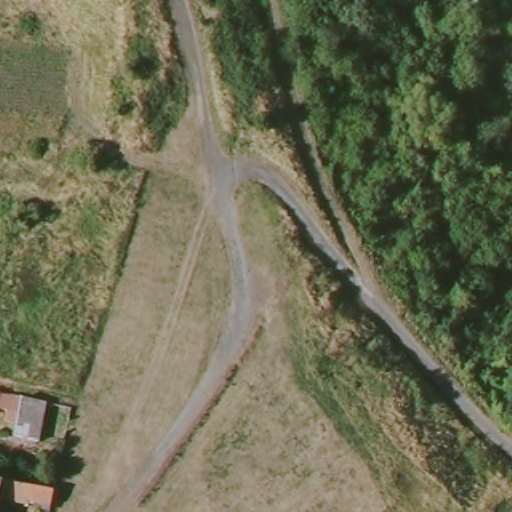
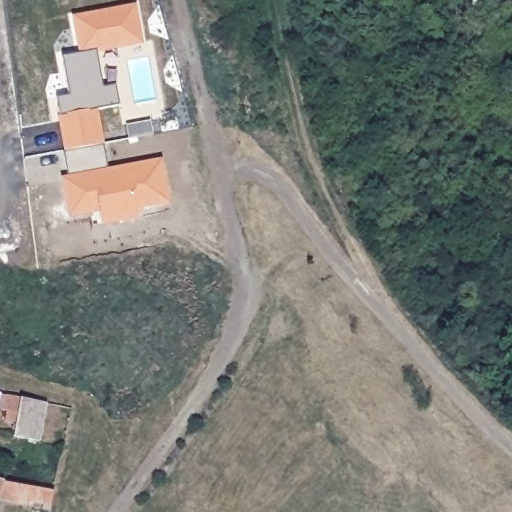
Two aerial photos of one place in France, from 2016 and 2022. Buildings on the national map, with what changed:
new [(58,116),(61,115),(58,95),(70,95),(62,55),(82,51),(75,16),(132,6),(140,43),(96,51),(103,87),(115,85),(118,105),(95,110),(101,145),(65,151),(58,116)]
new [(65,151),(101,145),(107,180),(159,171),(166,211),(137,216),(139,225),(114,230),(99,220),(98,215),(90,216),(90,221),(70,225),(64,189),(67,189),(61,152),(65,151)]
unchanged [(14,433),(20,398),(45,404),(37,440),(14,433)]
unchanged [(51,492),(48,505),(25,500),(25,504),(0,500),(0,482),(51,492)]

